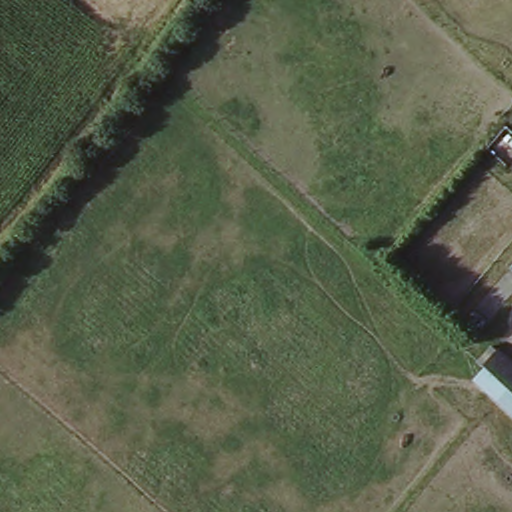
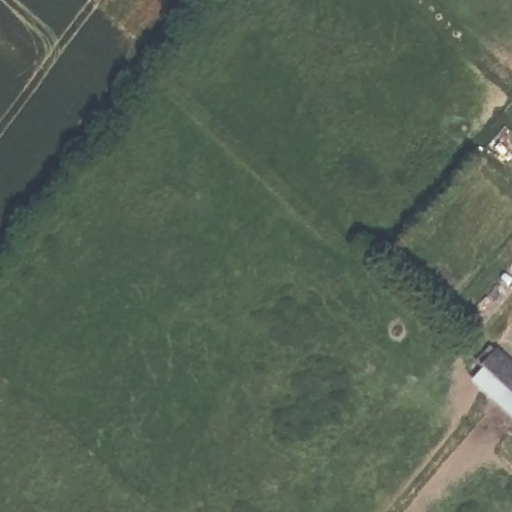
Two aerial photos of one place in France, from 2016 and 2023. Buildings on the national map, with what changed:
unchanged [(512,421),(471,384),(482,370),(477,366),(496,348),(512,363),(512,421)]

